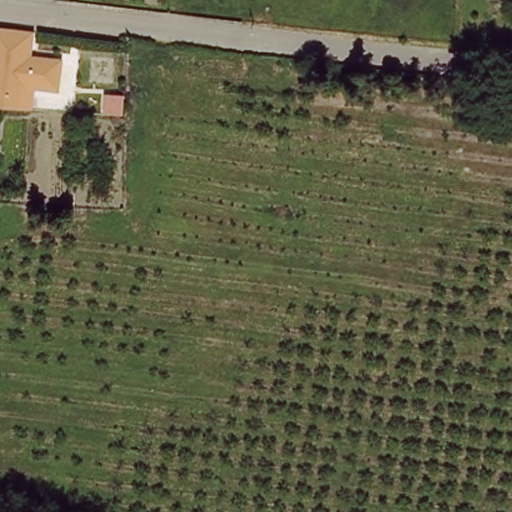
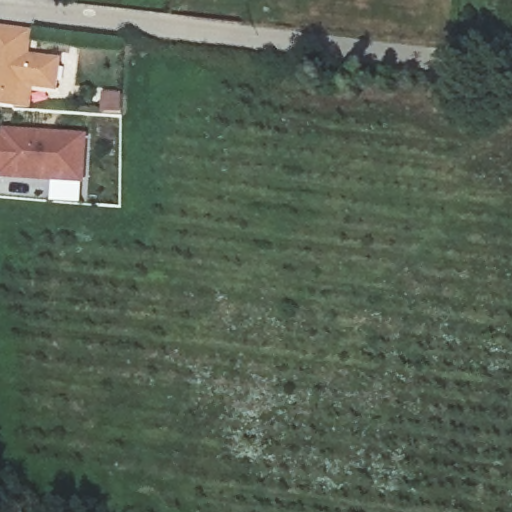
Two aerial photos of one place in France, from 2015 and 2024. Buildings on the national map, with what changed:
unchanged [(27,59),(56,61),(55,90),(19,88),(17,104),(0,103),(0,32),(27,35),(27,59)]
new [(4,130),(88,135),(85,186),(0,181),(2,174),(0,174),(0,139),(3,139),(4,130)]

